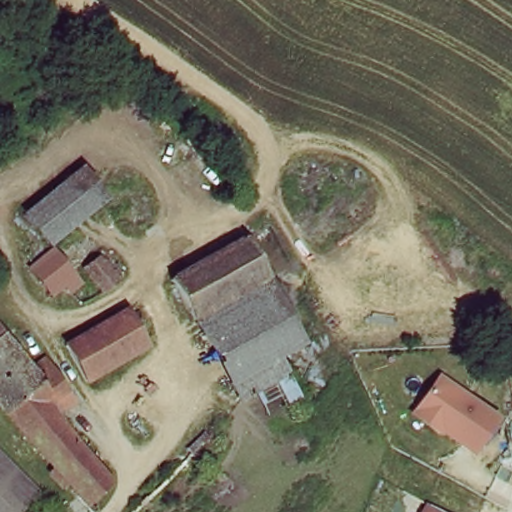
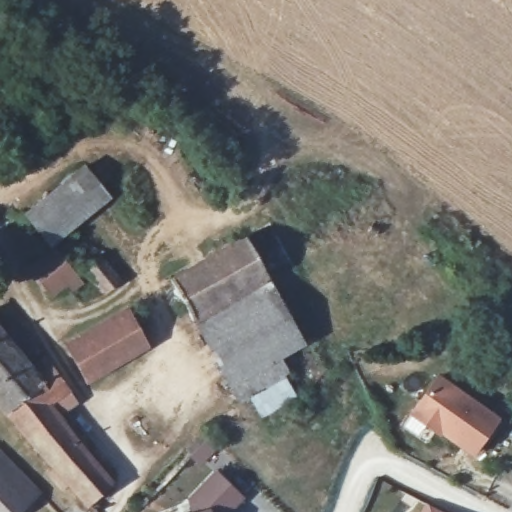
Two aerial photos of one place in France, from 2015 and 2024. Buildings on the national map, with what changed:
unchanged [(53,241),(29,213),(88,164),(112,193),(53,241)]
unchanged [(250,231),(273,277),(310,344),(286,359),(302,398),(264,418),(250,388),(236,396),(197,326),(173,271),(250,231)]
unchanged [(78,280),(67,290),(62,284),(50,294),(29,268),(32,267),(40,260),(50,251),(53,249),(78,280)]
unchanged [(104,290),(85,265),(102,251),(103,252),(122,276),(104,290)]
unchanged [(130,304),(150,348),(89,386),(67,340),(130,304)]
unchanged [(47,356),(72,384),(52,404),(120,483),(96,504),(33,435),(0,394),(0,327),(32,367),(47,356)]
unchanged [(442,374),(508,417),(477,456),(410,412),(442,374)]
unchanged [(45,487),(22,512),(0,512),(0,446),(1,445),(45,487)]
new [(215,469),(246,498),(232,512),(192,512),(187,498),(215,469)]
unchanged [(425,504),(439,512),(421,512),(425,504)]

